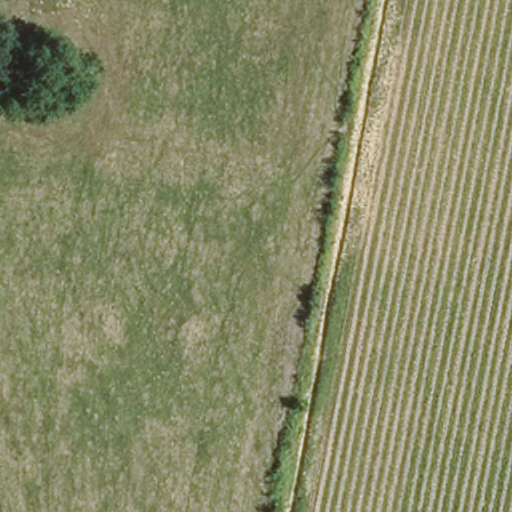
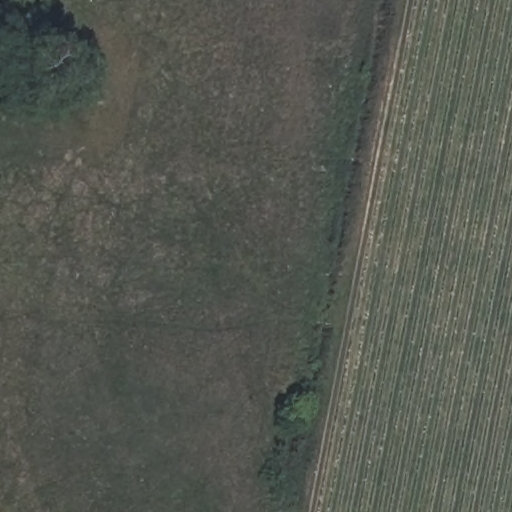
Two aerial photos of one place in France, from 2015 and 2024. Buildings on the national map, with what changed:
[]

